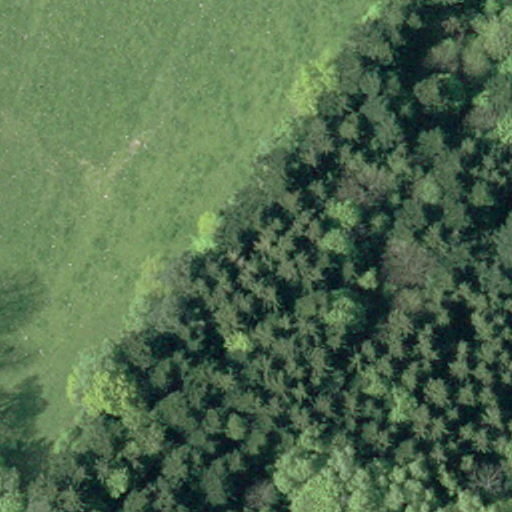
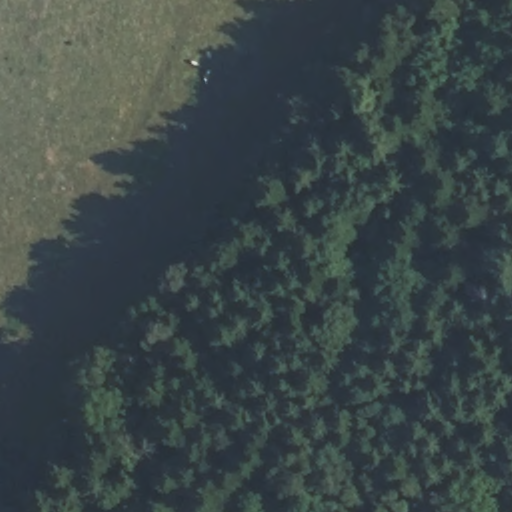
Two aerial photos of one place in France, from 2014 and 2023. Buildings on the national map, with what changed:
[]

